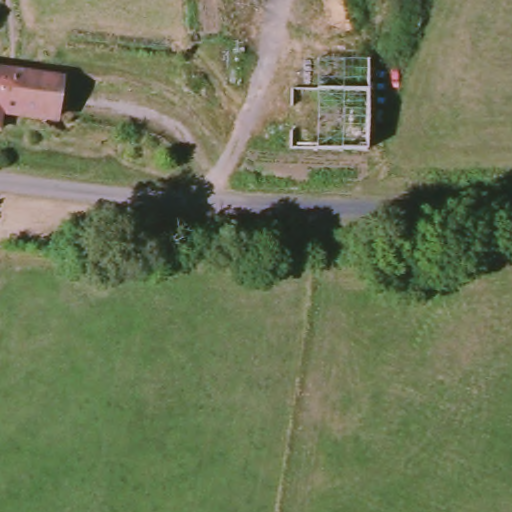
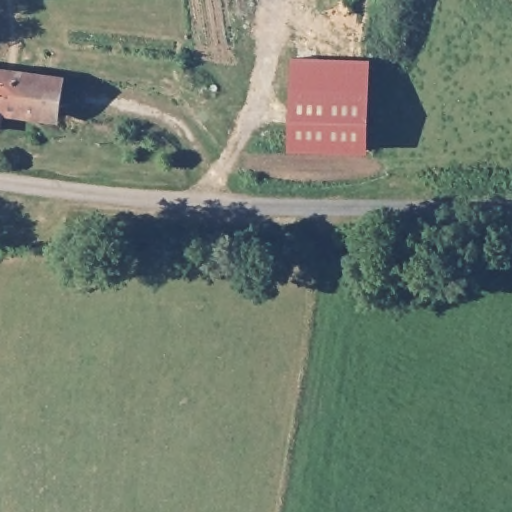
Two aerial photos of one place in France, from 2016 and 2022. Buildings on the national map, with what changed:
new [(292,62),(368,63),(367,94),(292,93),(292,62)]
unchanged [(62,109),(7,101),(5,121),(0,121),(0,71),(66,81),(62,109)]
new [(292,93),(367,94),(367,154),(290,153),(292,93)]

